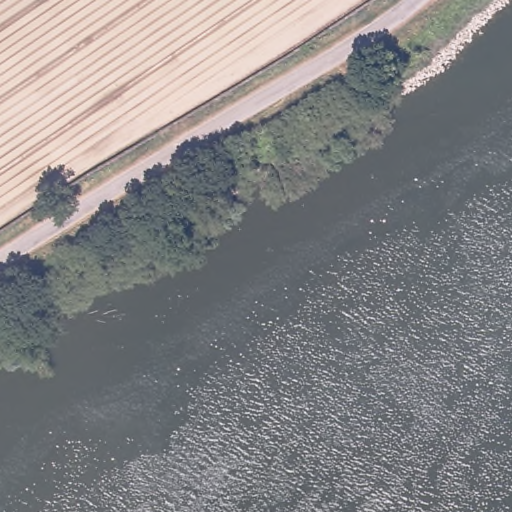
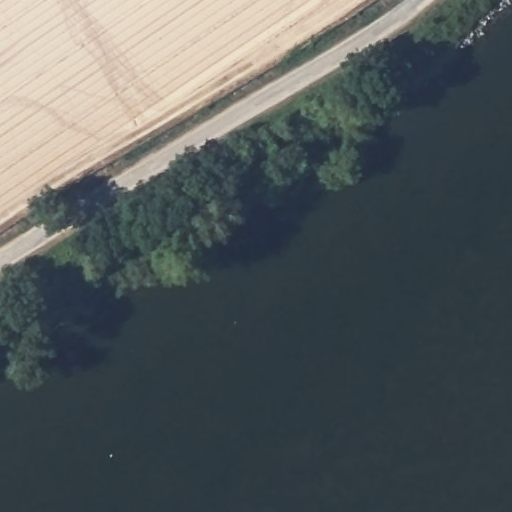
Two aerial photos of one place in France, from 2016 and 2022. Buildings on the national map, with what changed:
[]

